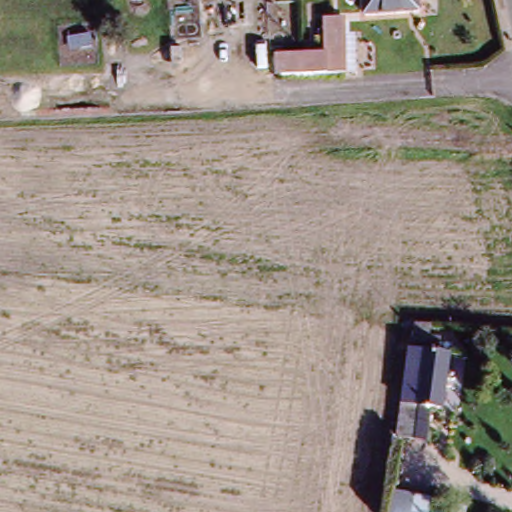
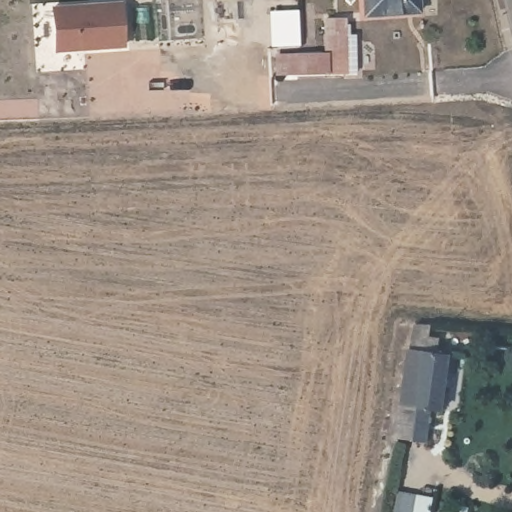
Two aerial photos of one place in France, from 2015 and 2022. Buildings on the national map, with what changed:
unchanged [(343,0),(418,0),(419,11),(345,17),(343,0)]
new [(123,1),(127,46),(55,52),(51,7),(123,1)]
unchanged [(268,57),(315,58),(316,24),(335,25),(335,40),(350,41),(348,66),(348,77),(333,76),(269,75),(269,72),(268,57)]
unchanged [(410,331),(432,334),(430,343),(440,346),(439,356),(450,358),(442,413),(430,411),(427,427),(416,425),(413,441),(395,438),(410,331)]

